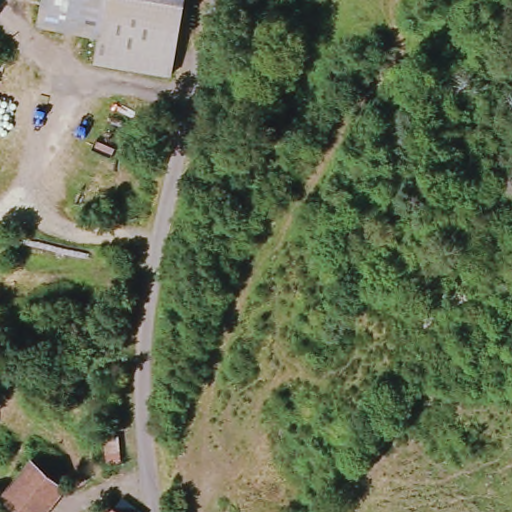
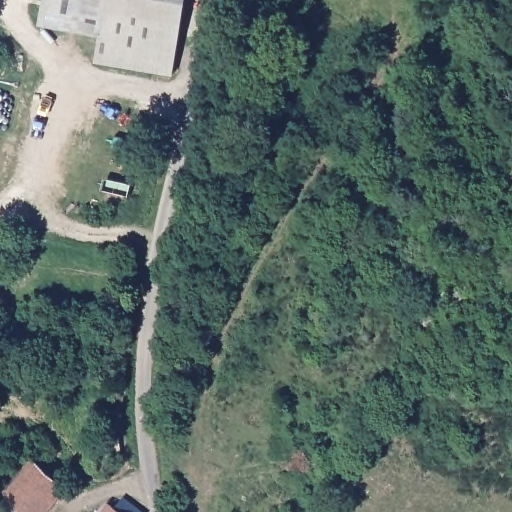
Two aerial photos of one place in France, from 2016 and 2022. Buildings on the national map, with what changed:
unchanged [(176,79),(101,69),(105,42),(41,31),(46,0),(187,0),(176,79)]
unchanged [(27,512),(7,497),(36,461),(70,488),(51,512),(27,512)]
unchanged [(129,497),(149,512),(109,512),(116,503),(122,507),(129,497)]

